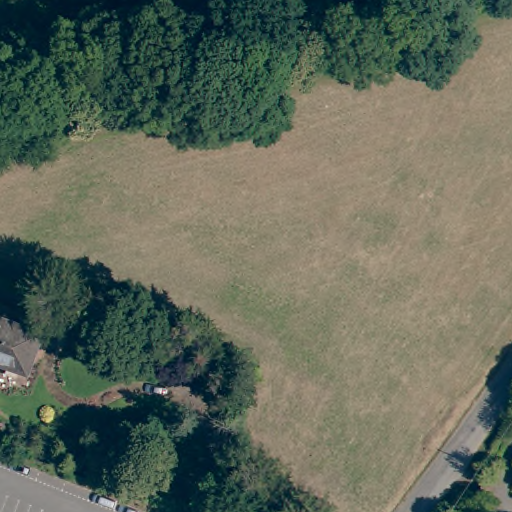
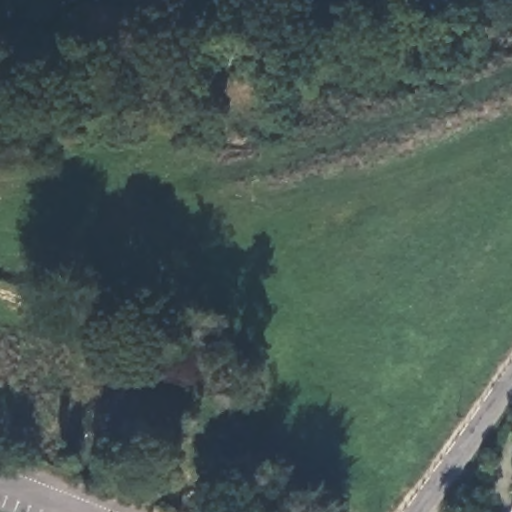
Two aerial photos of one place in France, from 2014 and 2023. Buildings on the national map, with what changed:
demolished [(0,322),(41,337),(26,376),(0,367),(0,322)]

